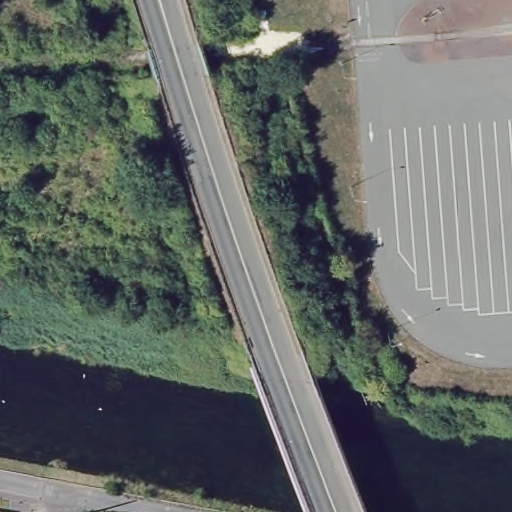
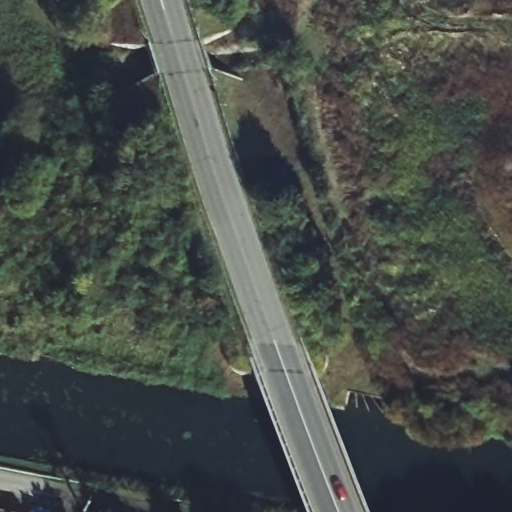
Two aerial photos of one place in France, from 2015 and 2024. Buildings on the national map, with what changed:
unchanged [(13,512),(7,512),(7,511),(13,512)]

